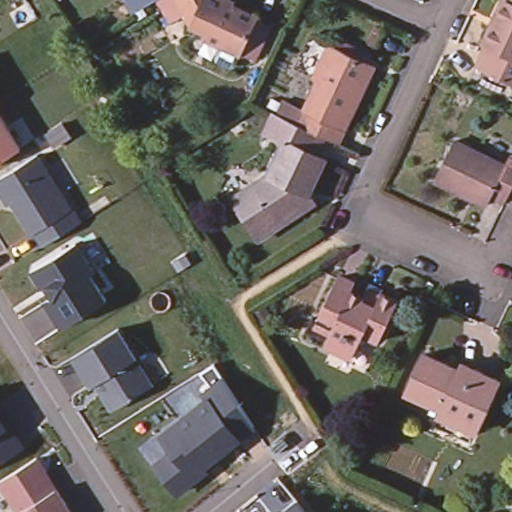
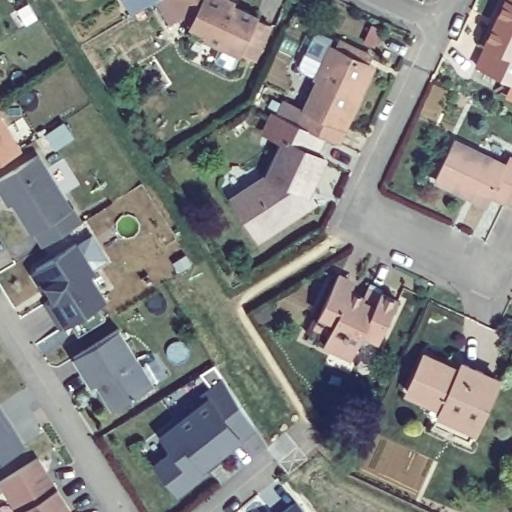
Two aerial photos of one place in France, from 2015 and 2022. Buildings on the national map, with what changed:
unchanged [(130,17),(120,0),(161,0),(130,17)]
unchanged [(244,47),(242,50),(207,37),(209,34),(175,21),(163,0),(227,0),(257,11),(256,15),(270,20),(258,53),(244,47)]
unchanged [(478,41),(498,0),(512,0),(512,57),(482,44),(478,41)]
unchanged [(303,109),(297,106),(327,42),(371,62),(342,125),(336,139),(324,132),(316,152),(325,155),(307,192),(312,202),(255,237),(229,195),(267,172),(284,138),(265,130),(274,110),(297,120),(303,109)]
unchanged [(472,65),(482,44),(512,57),(512,83),(472,65)]
unchanged [(0,104),(0,101),(2,103),(0,104)]
unchanged [(0,113),(22,150),(0,163),(0,113)]
unchanged [(489,198),(486,205),(431,180),(449,141),(504,165),(508,156),(512,158),(512,191),(505,205),(489,198)]
unchanged [(12,203),(7,206),(0,194),(0,179),(40,155),(82,220),(40,245),(12,203)]
unchanged [(69,329),(49,299),(52,294),(46,285),(40,288),(30,272),(79,244),(92,265),(93,280),(107,301),(69,329)]
unchanged [(369,281),(380,287),(377,291),(393,300),(370,340),(362,336),(357,345),(352,341),(343,357),(315,342),(319,335),(305,327),(312,316),(335,274),(352,283),(350,289),(362,295),(369,281)]
unchanged [(112,412),(75,355),(119,330),(154,384),(112,412)]
unchanged [(437,420),(443,407),(408,390),(429,347),(463,365),(467,356),(504,374),(479,425),(472,438),(437,420)]
unchanged [(243,438),(245,440),(178,499),(152,464),(170,450),(159,433),(207,397),(202,392),(222,379),(256,426),(243,438)]
unchanged [(0,412),(24,445),(0,461),(0,412)]
unchanged [(0,483),(39,460),(59,490),(74,512),(17,512),(0,487),(0,483)]
unchanged [(292,511),(299,505),(305,512),(275,512),(284,505),(292,511)]

